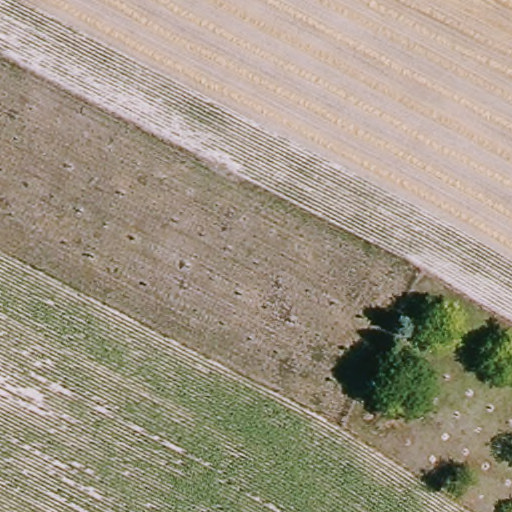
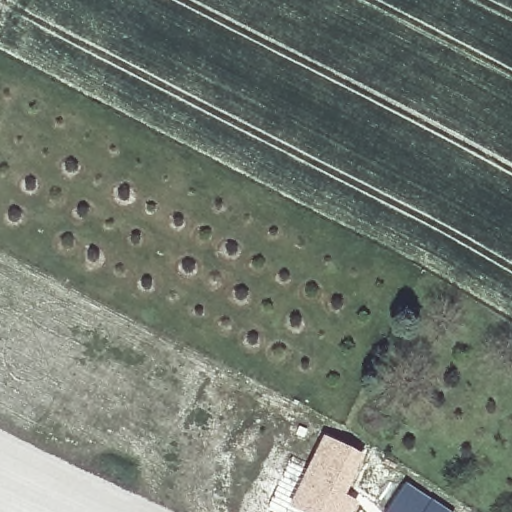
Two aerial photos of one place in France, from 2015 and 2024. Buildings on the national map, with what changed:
new [(361,454),(341,493),(354,499),(348,512),(302,512),(290,505),(325,436),(361,454)]
new [(450,512),(385,512),(405,482),(450,512)]

